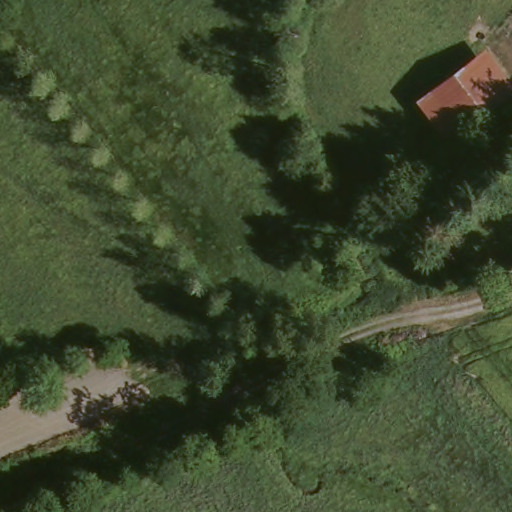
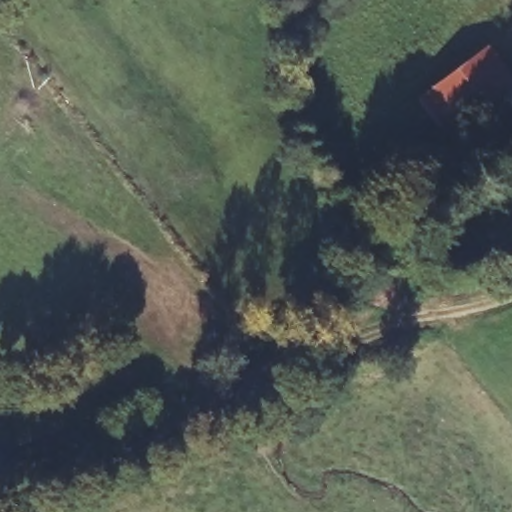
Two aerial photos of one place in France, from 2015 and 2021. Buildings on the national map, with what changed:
unchanged [(491,49),(512,75),(512,96),(453,141),(421,100),(491,49)]

